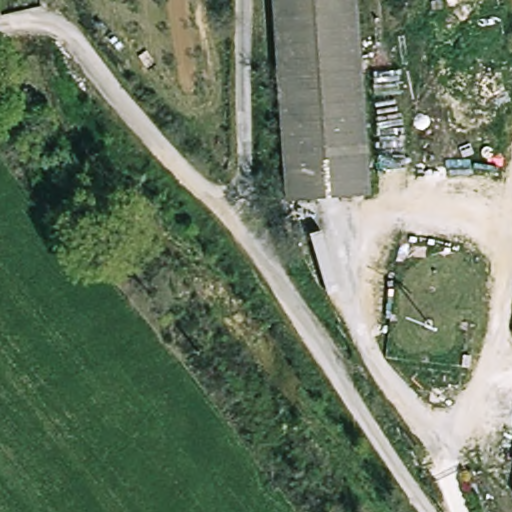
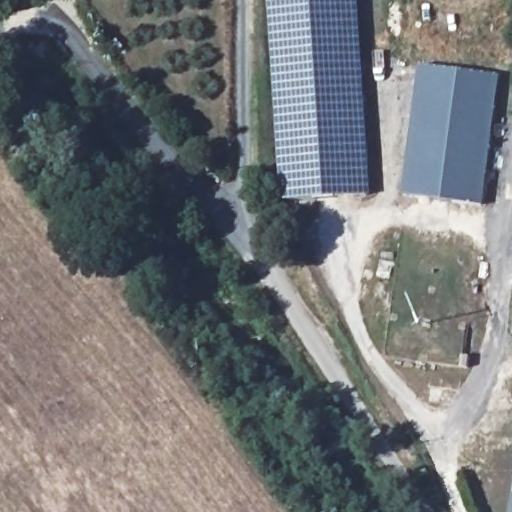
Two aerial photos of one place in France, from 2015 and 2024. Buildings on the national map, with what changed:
unchanged [(288,192),(277,0),(358,0),(368,189),(288,192)]
new [(499,75),(483,204),(403,194),(419,65),(459,70),(499,75)]

